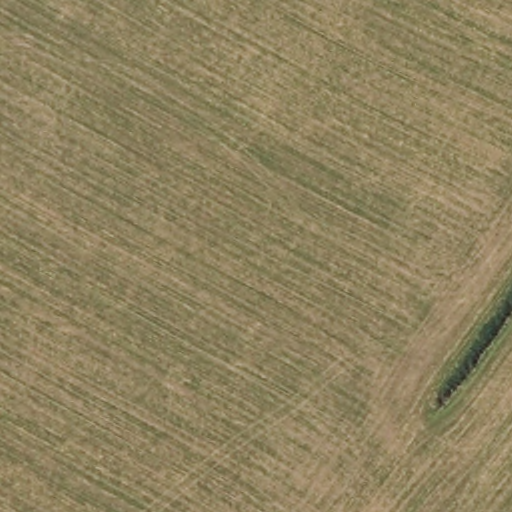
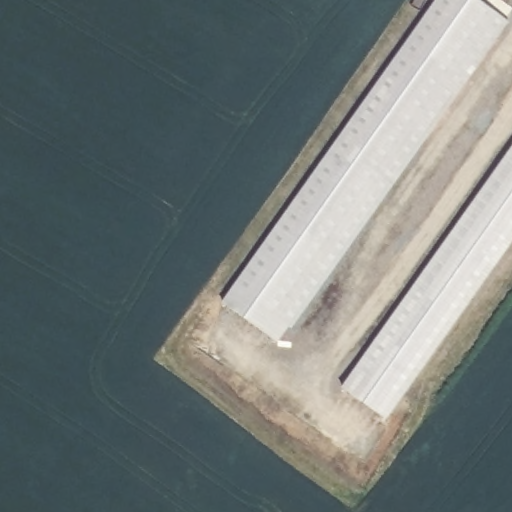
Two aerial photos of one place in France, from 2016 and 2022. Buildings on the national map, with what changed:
new [(506,21),(277,343),(221,305),(435,0),(477,0),(506,21)]
new [(341,388),(512,146),(512,242),(386,420),(341,388)]

